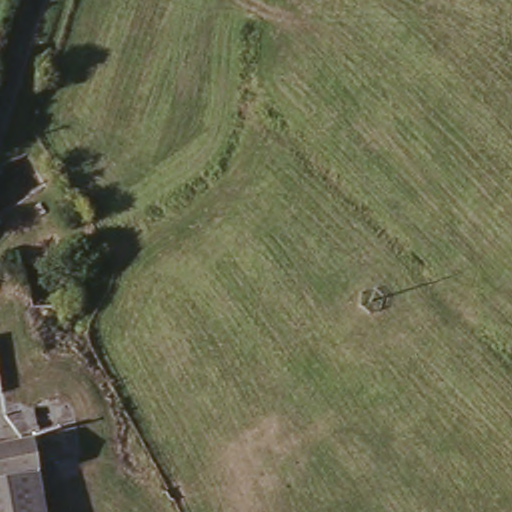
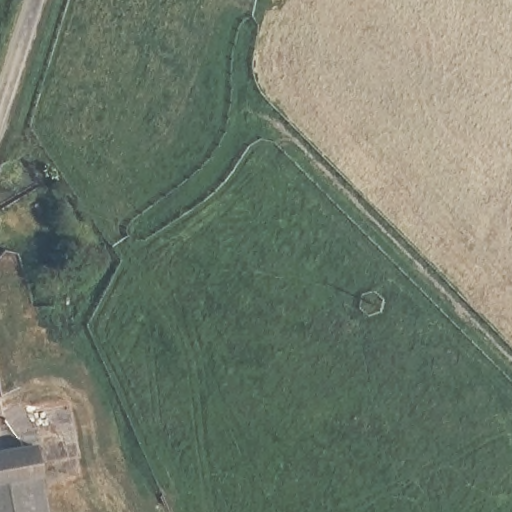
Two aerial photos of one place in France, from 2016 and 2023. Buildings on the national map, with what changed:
unchanged [(41,443),(50,512),(0,512),(0,450),(41,443)]

